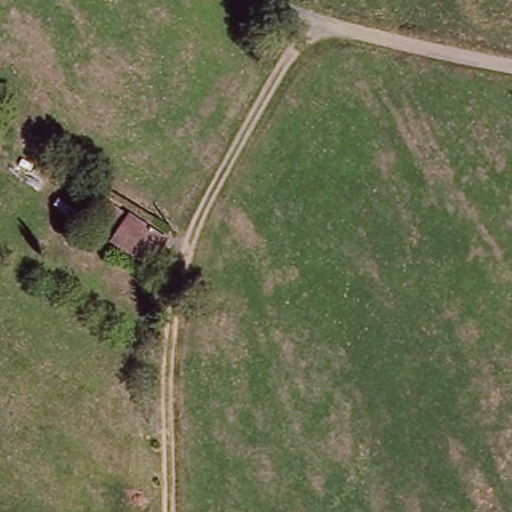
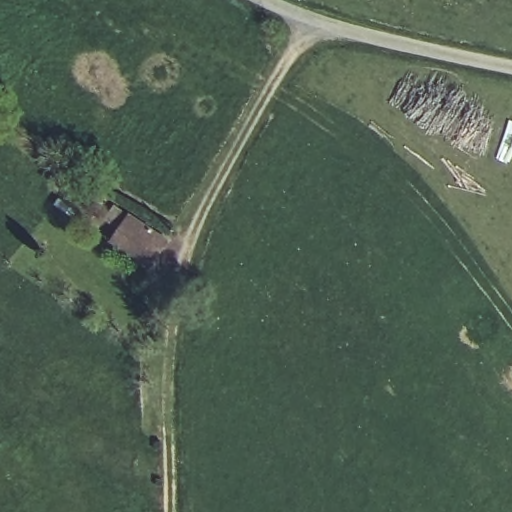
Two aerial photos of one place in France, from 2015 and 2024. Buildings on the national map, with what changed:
unchanged [(105,219),(115,202),(170,239),(160,255),(152,268),(115,245),(123,231),(105,219)]

